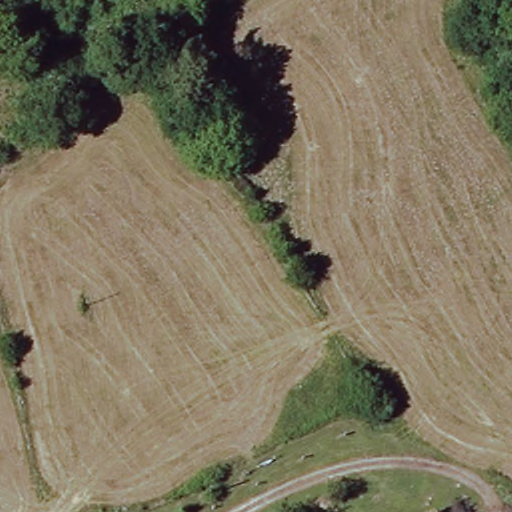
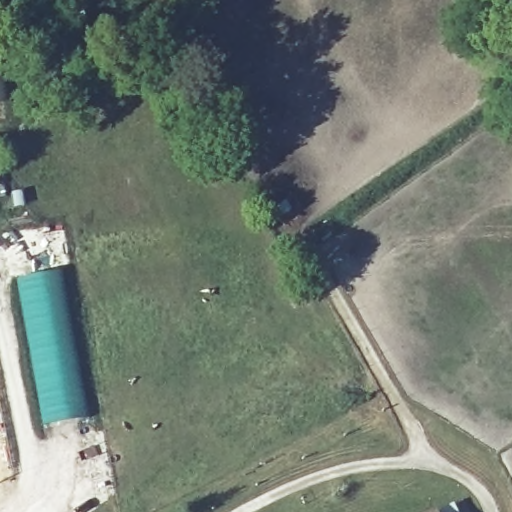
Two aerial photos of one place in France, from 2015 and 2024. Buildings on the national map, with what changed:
new [(5,102),(0,103),(0,78),(5,102)]
new [(17,279),(60,272),(86,418),(43,425),(17,279)]

